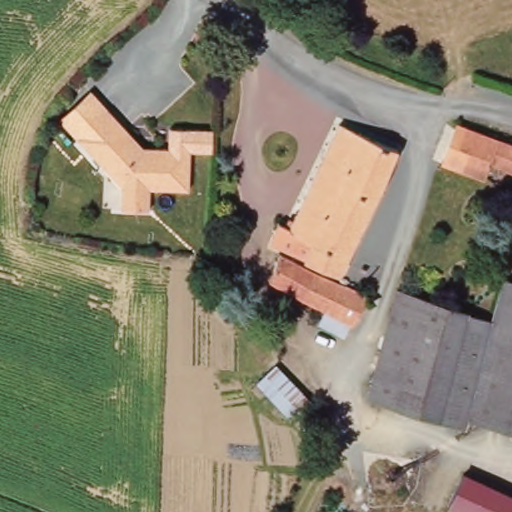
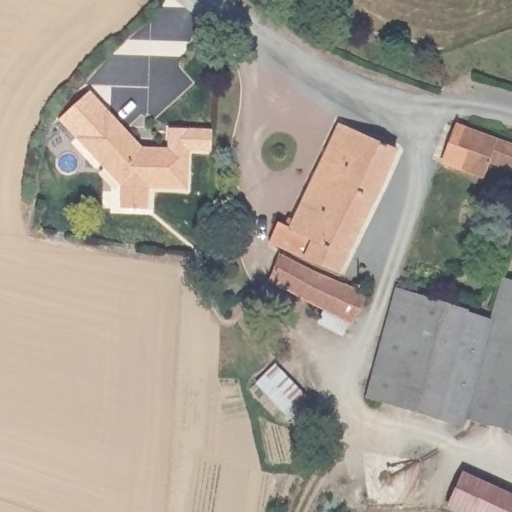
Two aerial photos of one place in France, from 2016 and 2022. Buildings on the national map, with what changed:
unchanged [(81,136),(113,109),(138,138),(146,147),(159,148),(194,149),(192,189),(153,188),(153,210),(125,209),(126,187),(109,168),(81,136)]
unchanged [(266,244),(277,224),(284,230),(311,171),(333,123),(391,150),(368,200),(356,228),(334,275),(266,244)]
unchanged [(436,163),(444,148),(453,127),(512,151),(512,177),(489,167),(481,184),(436,163)]
unchanged [(318,276),(303,302),(259,279),(273,253),(318,276)]
unchanged [(344,323),(339,321),(333,334),(310,321),(318,311),(303,302),(318,276),(357,296),(344,323)]
unchanged [(378,350),(390,300),(486,324),(494,285),(512,288),(512,430),(473,422),(485,376),(378,350)]
unchanged [(464,420),(462,426),(364,404),(378,350),(485,376),(473,422),(464,420)]
unchanged [(252,387),(276,362),(308,402),(285,421),(252,387)]
unchanged [(448,512),(439,509),(450,475),(512,495),(512,512),(448,512)]

